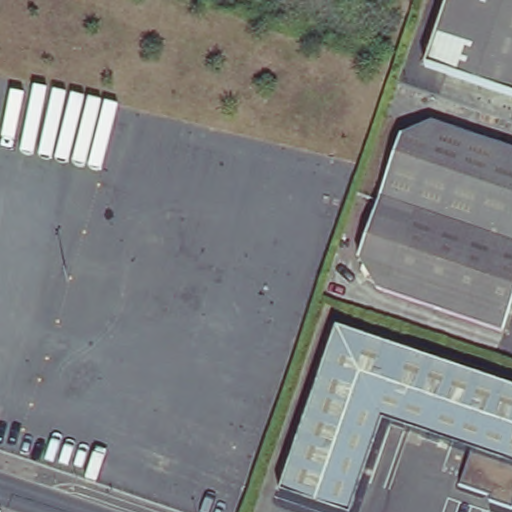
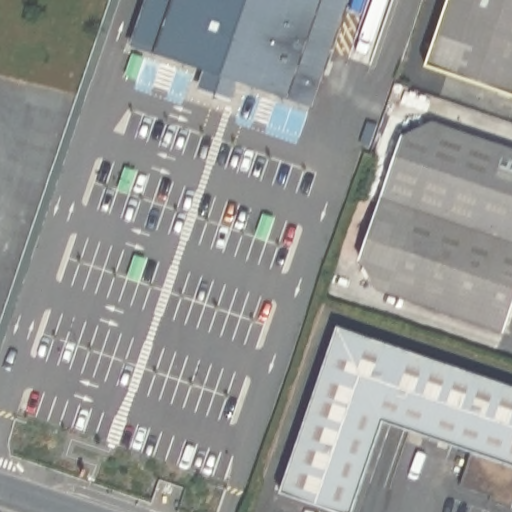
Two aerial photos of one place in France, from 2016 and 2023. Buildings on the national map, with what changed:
new [(243,75),(236,95),(205,84),(211,65),(136,41),(149,0),(355,0),(320,100),(243,75)]
unchanged [(429,63),(451,0),(492,0),(512,7),(512,91),(429,63)]
unchanged [(492,0),(512,0),(512,7),(492,0)]
unchanged [(383,195),(403,136),(437,124),(512,149),(512,315),(508,328),(386,287),(365,251),(383,195)]
unchanged [(388,421),(357,512),(344,512),(284,491),(341,327),(512,387),(512,504),(489,496),(491,491),(463,482),(474,450),(388,421)]

